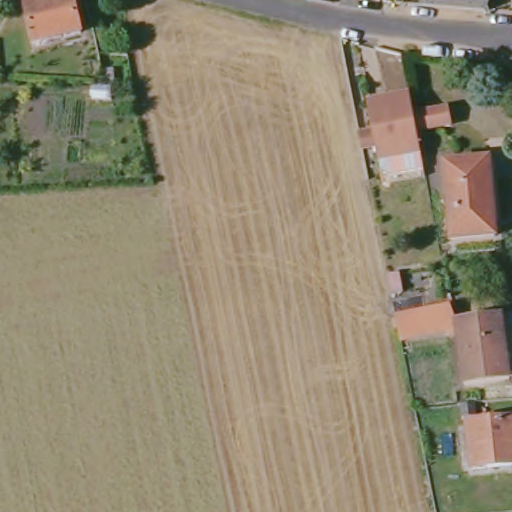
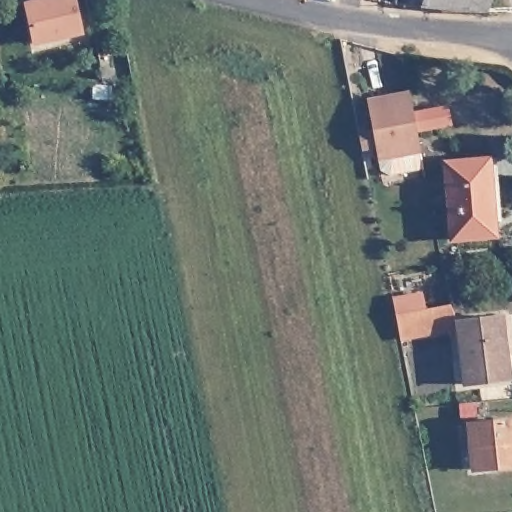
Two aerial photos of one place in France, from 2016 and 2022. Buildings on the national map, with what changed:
unchanged [(36,42),(27,4),(51,0),(54,0),(54,4),(72,0),(80,32),(36,42)]
unchanged [(427,7),(429,0),(494,0),(490,12),(427,7)]
unchanged [(355,130),(368,128),(363,97),(405,89),(410,110),(443,105),(446,121),(412,127),(417,151),(420,165),(385,172),(375,167),(371,142),(358,144),(355,130)]
unchanged [(485,159),(488,190),(498,190),(500,235),(454,237),(448,161),(485,159)]
unchanged [(443,326),(396,332),(392,309),(441,301),(443,326)]
unchanged [(500,313),(505,377),(461,381),(455,317),(500,313)]
unchanged [(512,424),(512,469),(471,471),(468,426),(512,424)]

